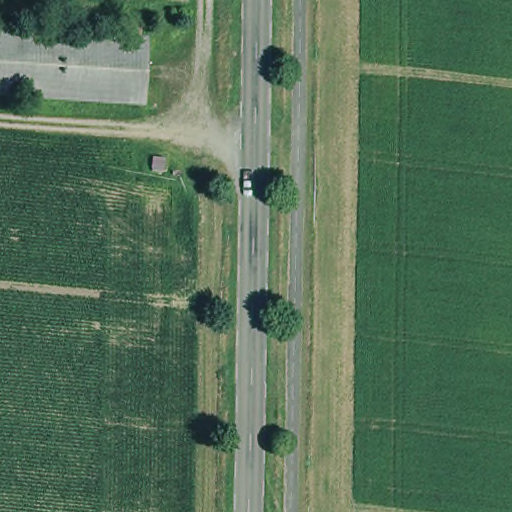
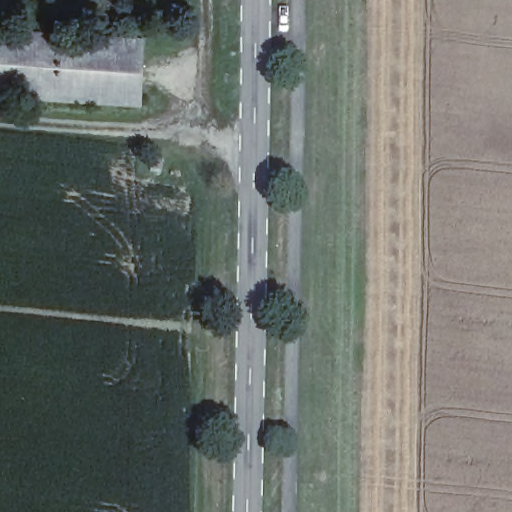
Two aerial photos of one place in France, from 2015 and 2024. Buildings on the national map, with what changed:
unchanged [(144,101),(0,91),(0,24),(147,35),(144,101)]

